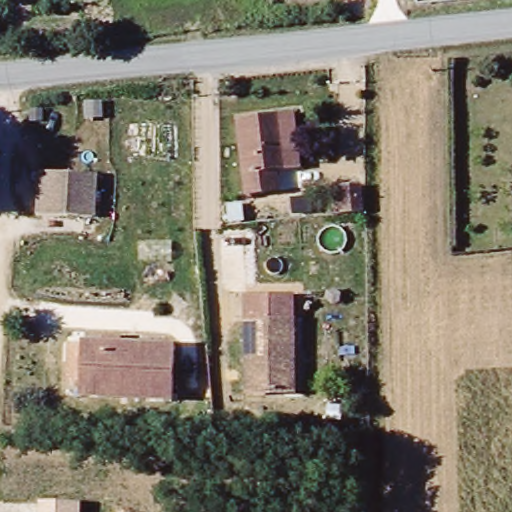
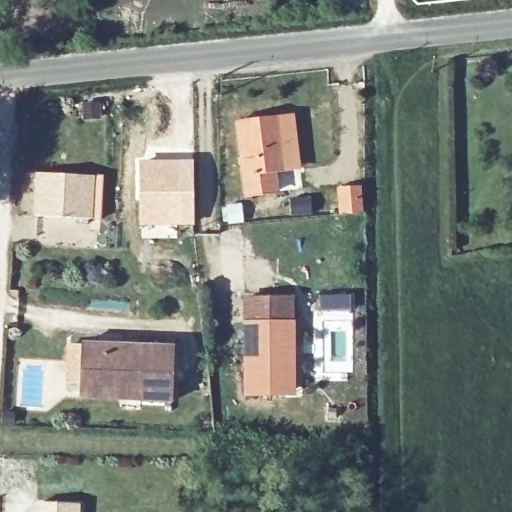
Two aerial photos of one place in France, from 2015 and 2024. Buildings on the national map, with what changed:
unchanged [(277,192),(246,193),(245,125),(284,124),(297,124),(297,166),(286,167),(276,167),(277,192)]
new [(194,159),(195,225),(140,228),(138,159),(194,159)]
unchanged [(46,220),(45,191),(46,178),(97,175),(100,216),(46,220)]
unchanged [(341,190),(358,188),(361,217),(343,219),(341,190)]
unchanged [(252,390),(250,297),(293,295),(296,367),(296,389),(285,389),(252,390)]
unchanged [(84,395),(86,346),(167,346),(173,346),(171,396),(167,396),(84,395)]
unchanged [(40,500),(81,503),(80,512),(38,512),(40,500)]

